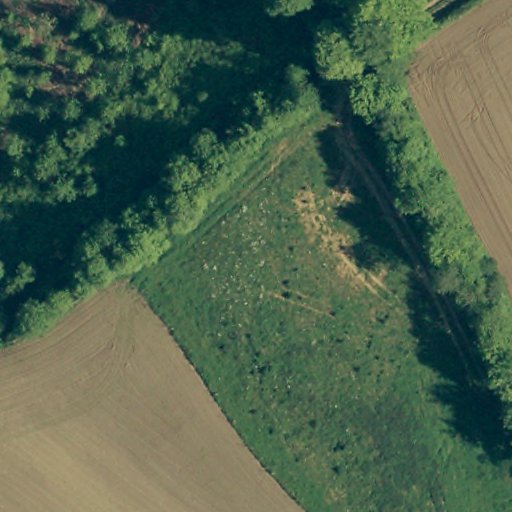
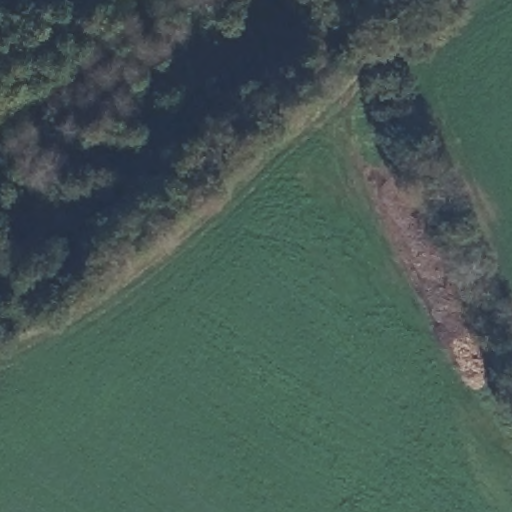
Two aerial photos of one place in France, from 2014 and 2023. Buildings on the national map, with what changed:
[]

